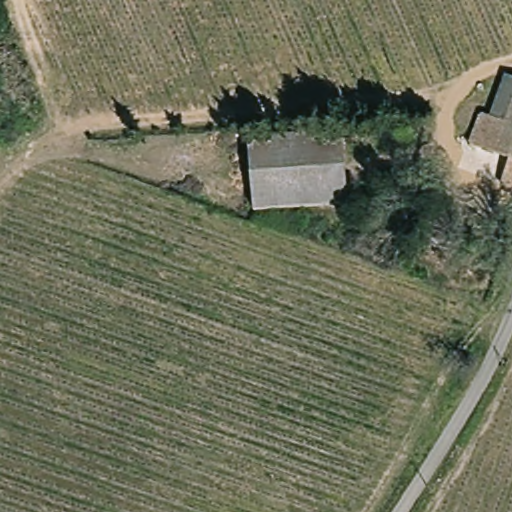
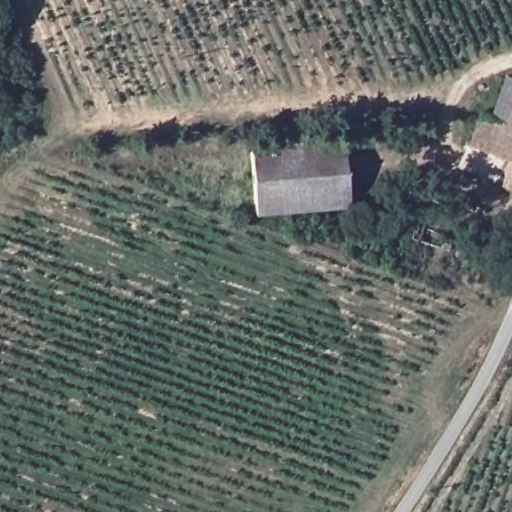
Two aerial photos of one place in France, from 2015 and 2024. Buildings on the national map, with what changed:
unchanged [(509,165),(470,151),(482,119),(489,121),(505,80),(512,82),(512,194),(500,190),(509,165)]
unchanged [(348,138),(349,211),(255,212),(253,140),(348,138)]
unchanged [(459,244),(454,256),(420,247),(424,234),(459,244)]

